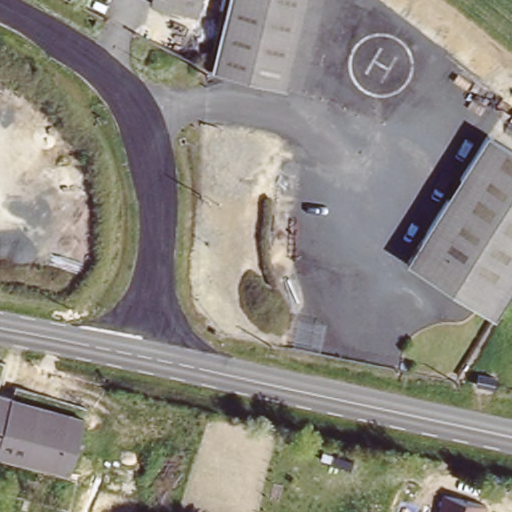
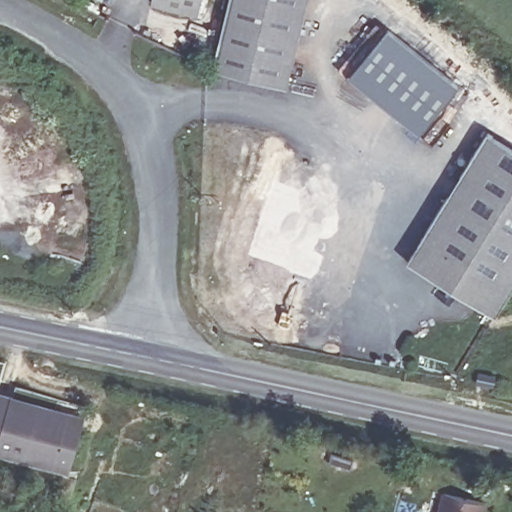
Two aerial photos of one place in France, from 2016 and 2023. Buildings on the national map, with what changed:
unchanged [(163,0),(198,0),(196,7),(163,0)]
unchanged [(206,70),(207,69),(223,0),(302,0),(281,88),(206,70)]
new [(337,70),(378,23),(390,31),(457,85),(421,134),(350,78),(337,70)]
unchanged [(487,133),(512,149),(512,284),(492,316),(405,260),(487,133)]
unchanged [(70,476),(0,456),(0,393),(83,414),(70,476)]
unchanged [(485,501),(483,512),(432,512),(436,491),(485,501)]

